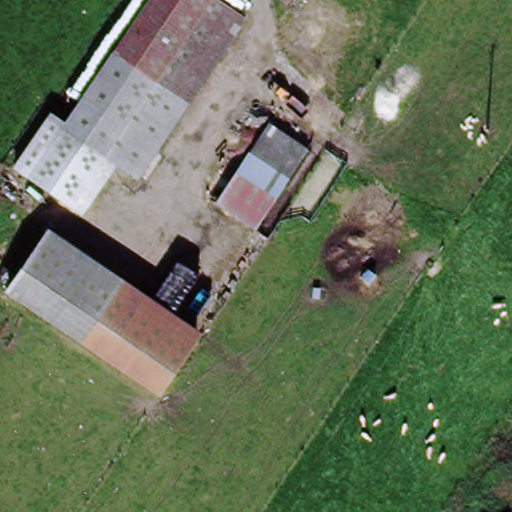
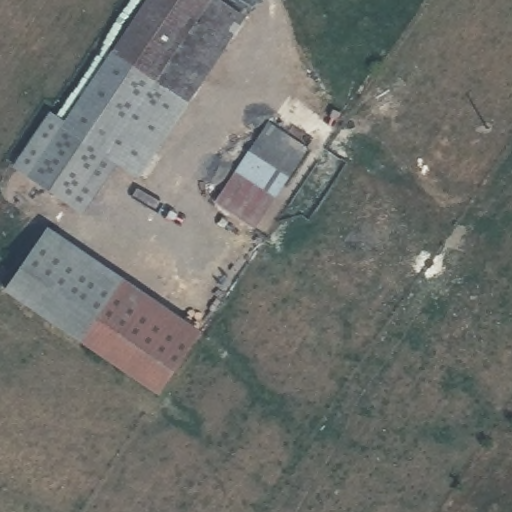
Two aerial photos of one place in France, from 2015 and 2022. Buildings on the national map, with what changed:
unchanged [(243,24),(133,180),(58,129),(73,107),(148,0),(209,0),(243,24)]
unchanged [(83,217),(10,170),(50,113),(63,122),(58,129),(115,167),(83,217)]
unchanged [(271,121),(310,150),(254,230),(215,203),(271,121)]
unchanged [(110,298),(80,345),(3,293),(5,290),(46,229),(122,280),(110,298)]
unchanged [(200,334),(187,353),(110,298),(122,280),(200,334)]
unchanged [(110,298),(187,353),(158,396),(80,345),(110,298)]

